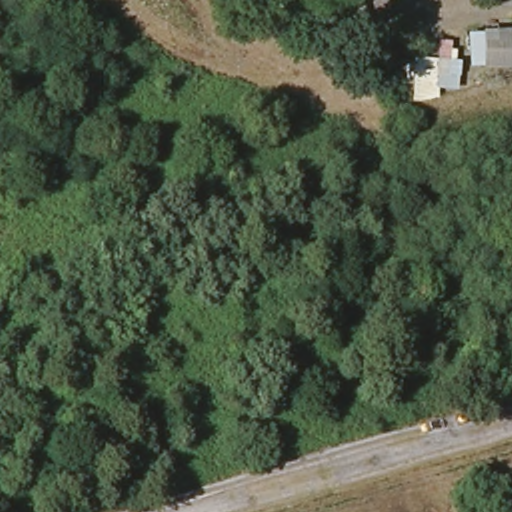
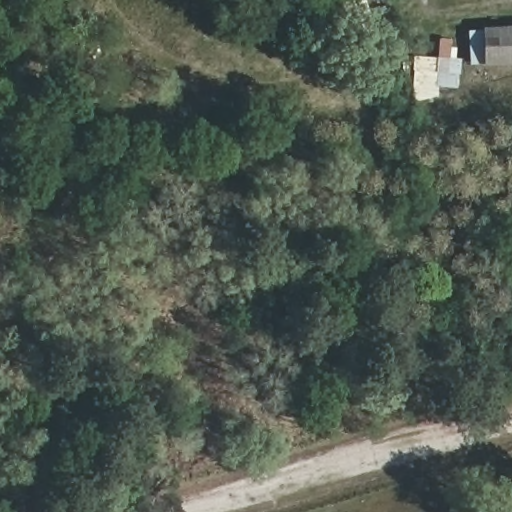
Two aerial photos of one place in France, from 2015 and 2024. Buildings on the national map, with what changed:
unchanged [(512,61),(481,62),(478,34),(512,32),(512,61)]
unchanged [(435,86),(434,99),(410,96),(414,55),(435,55),(437,36),(449,38),(448,56),(456,56),(454,88),(435,86)]

